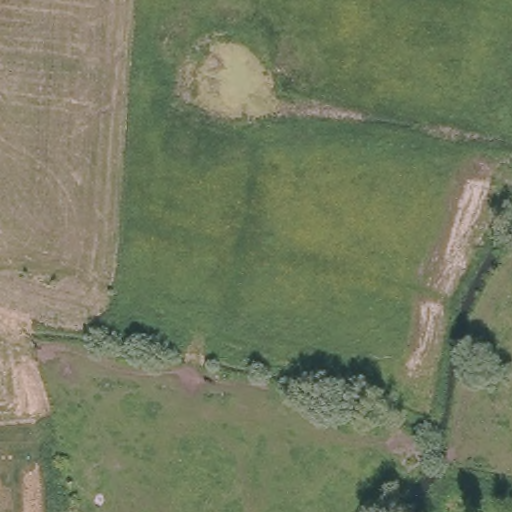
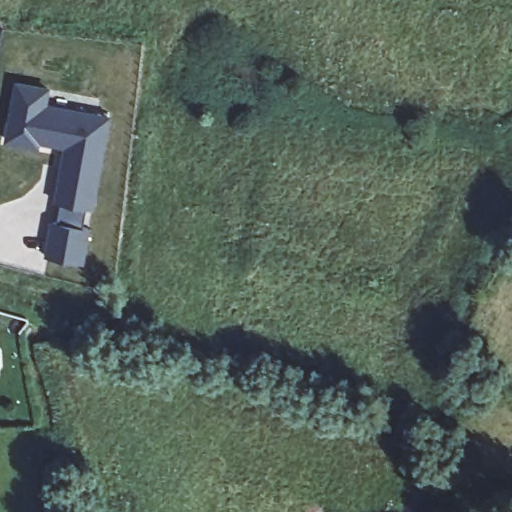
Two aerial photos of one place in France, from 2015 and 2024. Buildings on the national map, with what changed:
new [(15,84),(50,89),(48,103),(107,113),(91,208),(56,202),(62,168),(68,169),(71,147),(36,141),(38,126),(9,121),(15,84)]
new [(53,221),(88,227),(83,262),(48,257),(53,221)]

